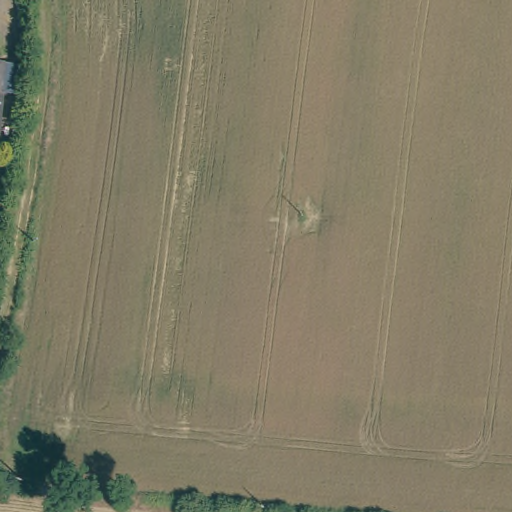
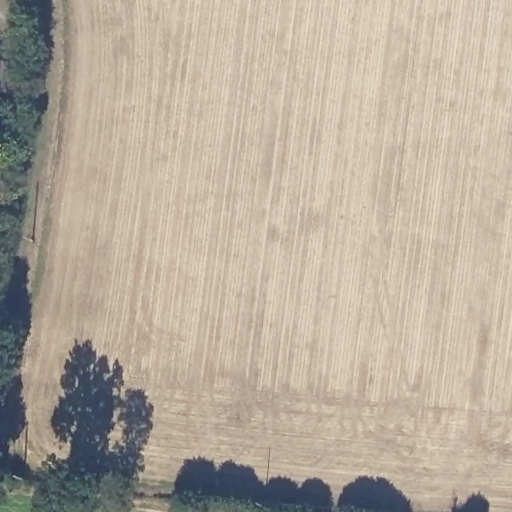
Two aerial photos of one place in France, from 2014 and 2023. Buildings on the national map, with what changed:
unchanged [(2,75),(0,104),(0,75),(2,75)]

